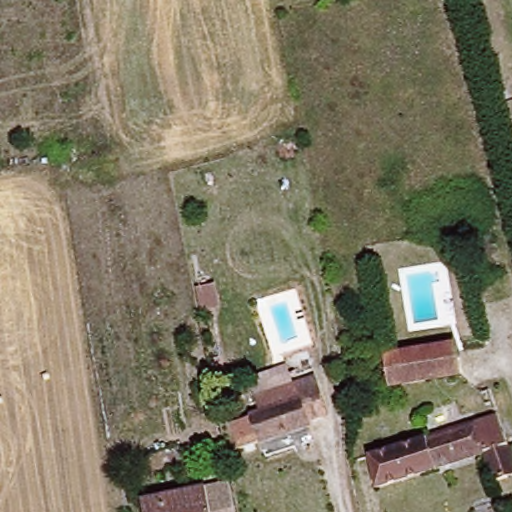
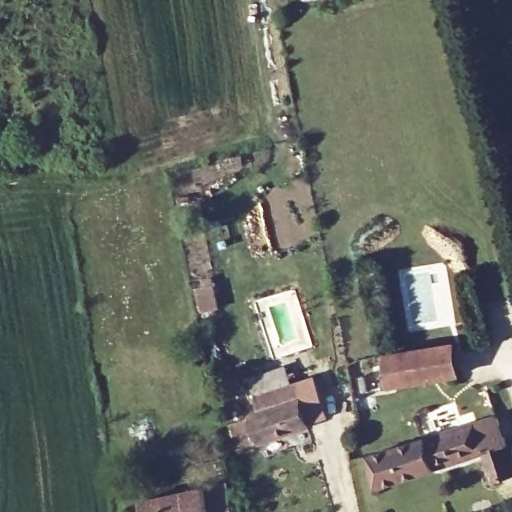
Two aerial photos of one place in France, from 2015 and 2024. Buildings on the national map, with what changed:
unchanged [(193,289),(214,283),(221,309),(201,313),(193,289)]
unchanged [(512,348),(512,355),(485,362),(471,298),(499,292),(512,348)]
unchanged [(394,388),(389,357),(457,346),(462,378),(394,388)]
unchanged [(316,431),(296,436),(296,439),(248,449),(243,422),(251,419),(248,404),(244,386),(281,378),(285,396),(306,391),(316,431)]
unchanged [(371,462),(474,428),(465,400),(492,392),(512,456),(512,478),(508,479),(509,494),(494,498),(483,461),(381,493),(371,462)]
unchanged [(136,507),(213,493),(217,512),(137,512),(136,507)]

